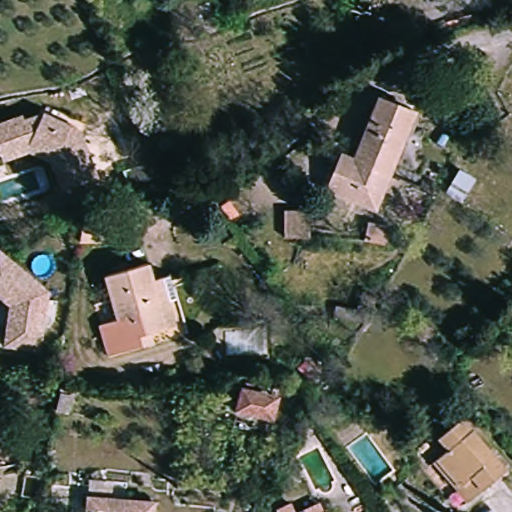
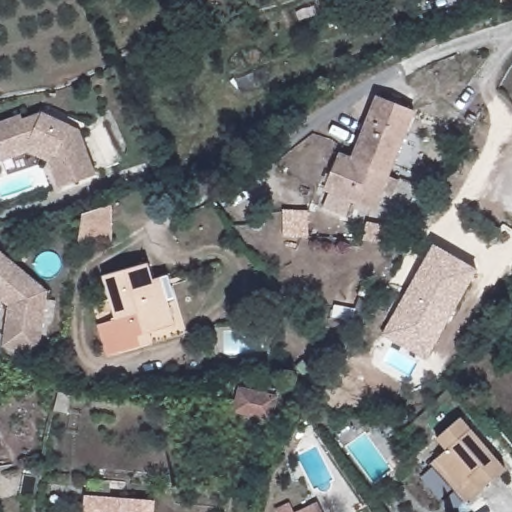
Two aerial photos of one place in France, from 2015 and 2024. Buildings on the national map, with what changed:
unchanged [(329,191),(331,185),(344,155),(358,160),(381,99),(416,115),(380,209),(329,191)]
unchanged [(27,152),(0,162),(0,123),(20,116),(22,121),(42,115),(78,131),(94,177),(58,190),(51,170),(48,162),(27,152)]
unchanged [(77,249),(82,216),(110,203),(105,254),(77,249)]
unchanged [(310,214),(303,237),(279,230),(285,207),(310,214)]
unchanged [(383,251),(360,246),(363,232),(386,238),(383,251)]
new [(427,360),(382,335),(434,244),(479,268),(427,360)]
unchanged [(0,296),(0,252),(42,283),(36,343),(1,340),(5,300),(0,296)]
unchanged [(144,346),(113,357),(103,330),(117,323),(100,280),(143,262),(151,260),(158,277),(175,321),(167,325),(152,330),(155,341),(144,346)]
unchanged [(274,416),(236,410),(240,386),(278,393),(274,416)]
unchanged [(55,395),(70,397),(68,417),(51,415),(55,395)]
unchanged [(470,417),(509,473),(482,492),(472,480),(462,486),(438,453),(451,445),(444,434),(470,417)]
unchanged [(151,502),(150,512),(83,512),(84,498),(123,500),(151,502)]
unchanged [(292,505),(295,512),(278,512),(278,511),(292,505)]
unchanged [(321,512),(309,512),(319,507),(321,512)]

